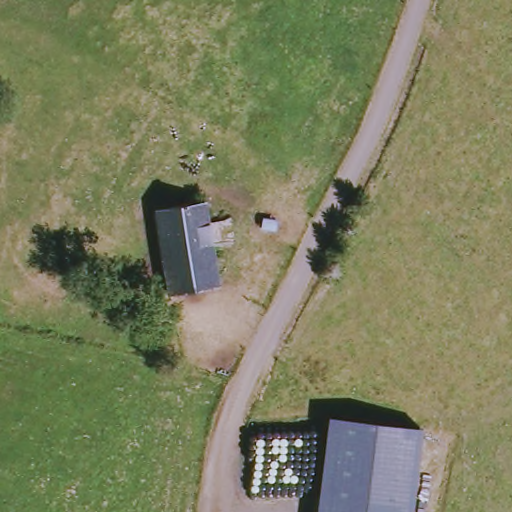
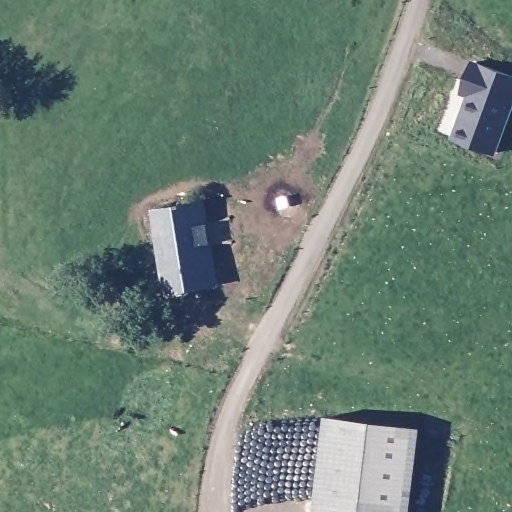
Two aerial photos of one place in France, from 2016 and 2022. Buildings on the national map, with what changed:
new [(512,75),(512,118),(498,156),(452,139),(468,98),(461,95),(474,61),(512,75)]
unchanged [(175,294),(162,210),(211,202),(225,286),(175,294)]
unchanged [(328,414),(422,426),(412,512),(316,512),(328,414)]

